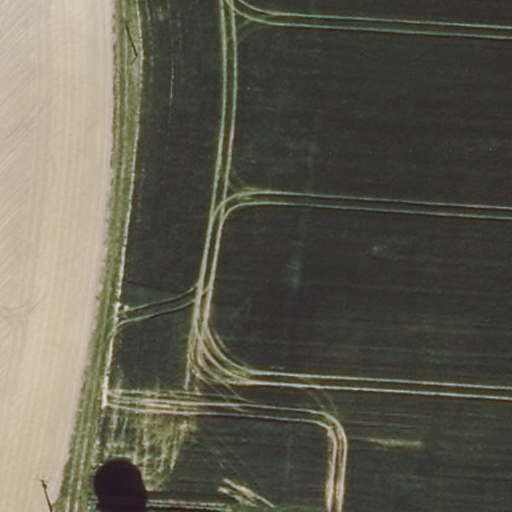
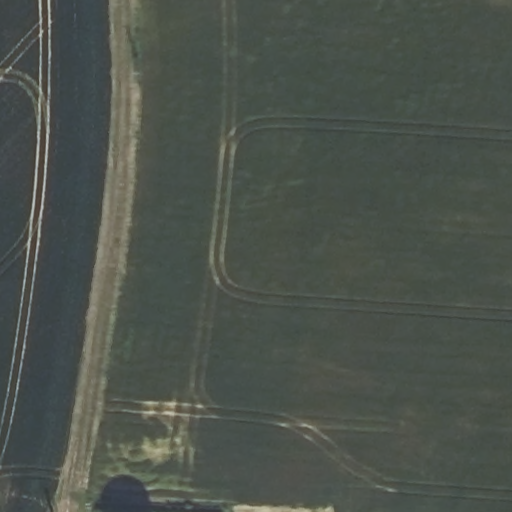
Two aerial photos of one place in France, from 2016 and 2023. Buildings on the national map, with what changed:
unchanged [(97,509),(97,512),(86,512),(86,508),(97,509)]

